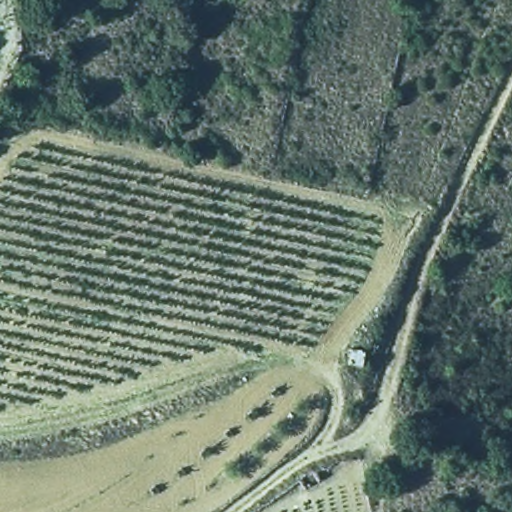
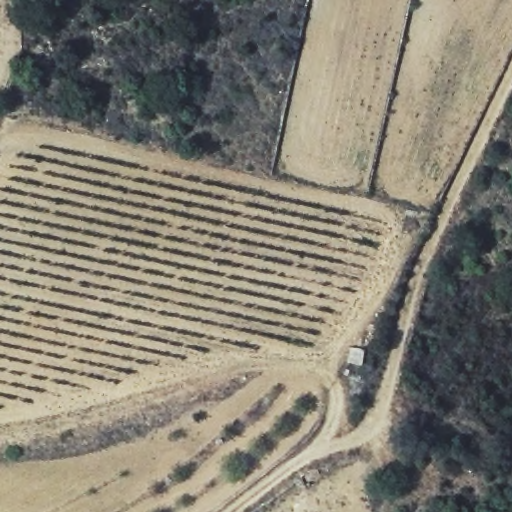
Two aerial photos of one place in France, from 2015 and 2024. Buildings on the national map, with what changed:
unchanged [(349,345),(365,348),(363,367),(347,363),(349,345)]

